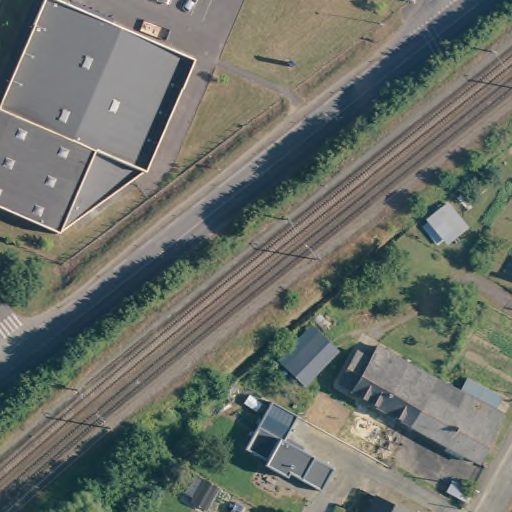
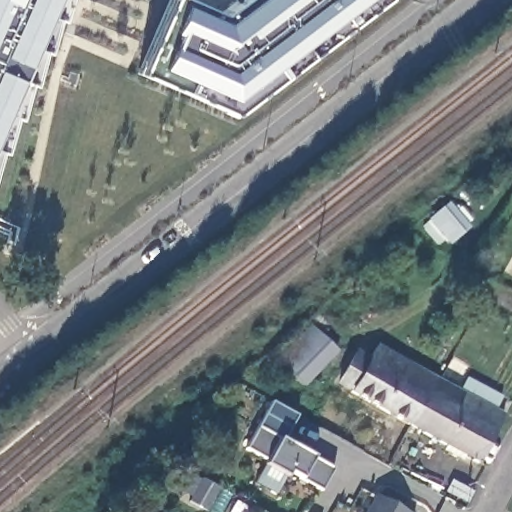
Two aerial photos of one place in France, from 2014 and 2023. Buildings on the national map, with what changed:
new [(50,18),(40,52),(36,51),(29,83),(20,82),(12,118),(7,117),(0,148),(0,0),(60,0),(55,20),(50,18)]
demolished [(147,172),(65,233),(0,204),(0,106),(4,107),(50,0),(223,0),(149,173),(147,172)]
new [(136,72),(167,0),(192,0),(220,12),(237,0),(382,0),(229,112),(136,72)]
unchanged [(443,205),(465,232),(451,243),(430,216),(443,205)]
unchanged [(298,378),(286,366),(325,326),(337,338),(298,378)]
unchanged [(416,427),(357,394),(360,390),(348,383),(365,352),(377,359),(386,346),(445,379),(416,427)]
unchanged [(450,451),(452,447),(416,427),(445,379),(459,387),(466,373),(507,396),(500,409),(510,415),(483,464),(470,457),(468,461),(450,451)]
unchanged [(301,479),(288,472),(285,475),(265,465),(267,461),(246,450),(271,402),(295,416),(282,442),(312,458),(332,468),(321,490),(301,479)]
demolished [(339,445),(343,435),(356,408),(387,423),(373,452),(370,460),(339,445)]
unchanged [(207,507),(192,499),(205,477),(220,485),(207,507)]
unchanged [(475,492),(469,502),(450,492),(455,481),(475,492)]
unchanged [(377,495),(407,512),(367,512),(377,495)]

